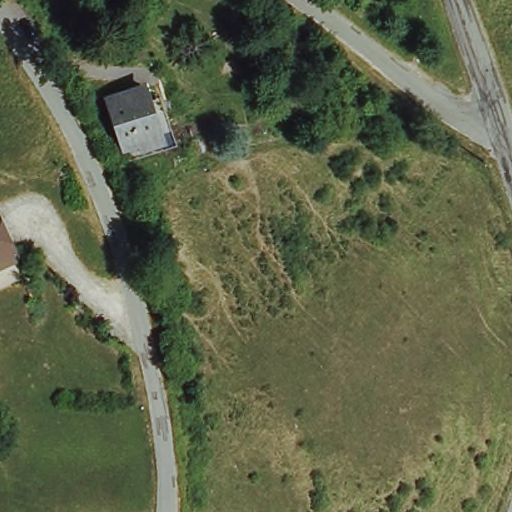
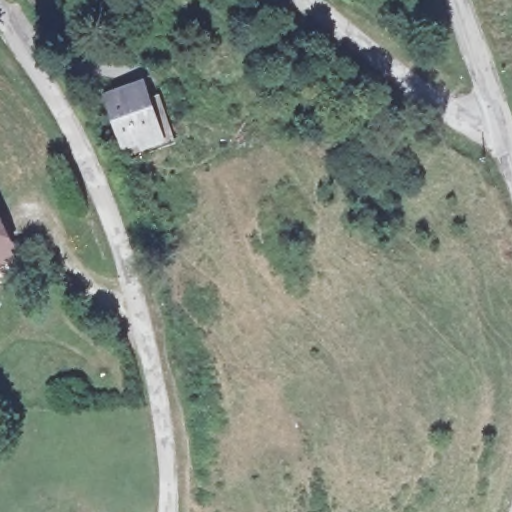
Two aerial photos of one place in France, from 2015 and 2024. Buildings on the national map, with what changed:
unchanged [(144,102),(159,144),(129,157),(112,112),(144,102)]
unchanged [(0,262),(0,242),(3,247),(9,257),(0,262)]

